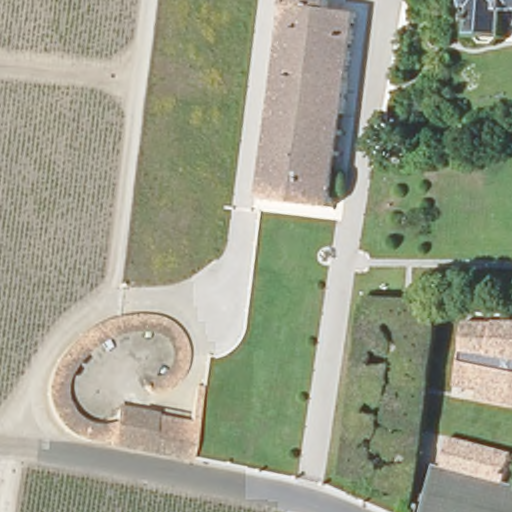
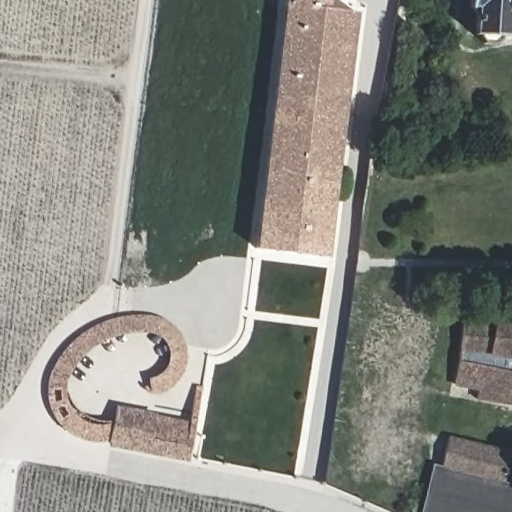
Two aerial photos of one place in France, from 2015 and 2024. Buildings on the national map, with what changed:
unchanged [(354,19),(330,211),(328,212),(259,202),(276,65),(284,0),(327,0),(325,15),(354,19)]
unchanged [(507,33),(495,43),(484,43),(479,38),(479,35),(473,34),(475,8),(468,7),(469,0),(512,0),(512,24),(508,24),(507,33)]
new [(332,212),(327,257),(256,248),(259,202),(328,212),(330,211),(332,212)]
unchanged [(58,360),(77,339),(99,327),(125,319),(154,319),(176,326),(189,345),(190,364),(182,381),(170,392),(156,395),(146,389),(149,380),(165,370),(167,357),(162,344),(154,336),(139,337),(113,343),(93,351),(76,367),(68,381),(67,396),(71,407),(78,417),(88,425),(112,427),(118,407),(197,423),(189,464),(108,448),(81,444),(69,437),(59,427),(52,417),(50,407),(48,382),(58,360)]
unchanged [(482,393),(458,387),(467,326),(512,327),(512,409),(481,403),(482,393)]
demolished [(16,415),(17,420),(16,424),(13,427),(8,427),(4,425),(3,419),(6,414),(11,414),(16,415)]
unchanged [(435,470),(441,471),(447,440),(509,456),(512,457),(512,512),(424,512),(435,470)]

